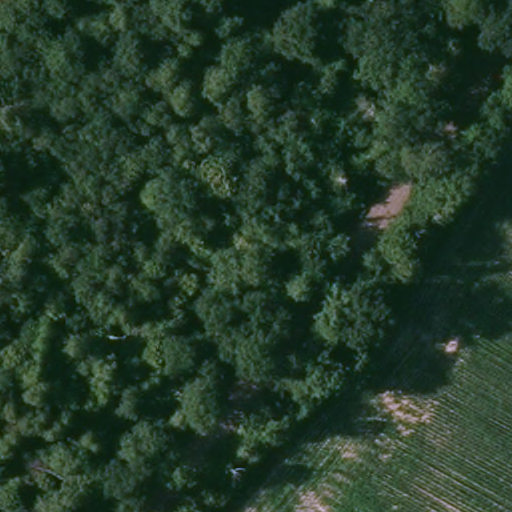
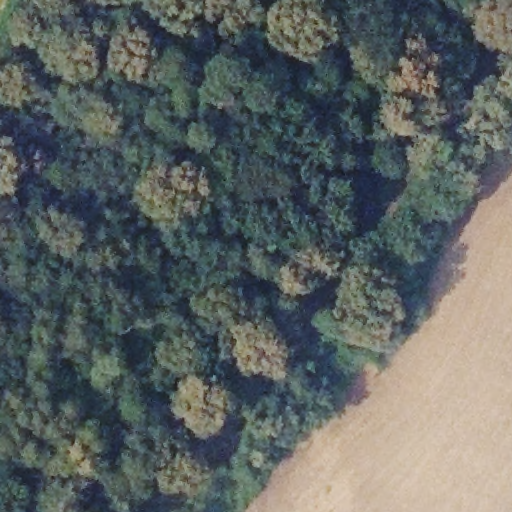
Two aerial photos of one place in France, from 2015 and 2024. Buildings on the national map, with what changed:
[]

